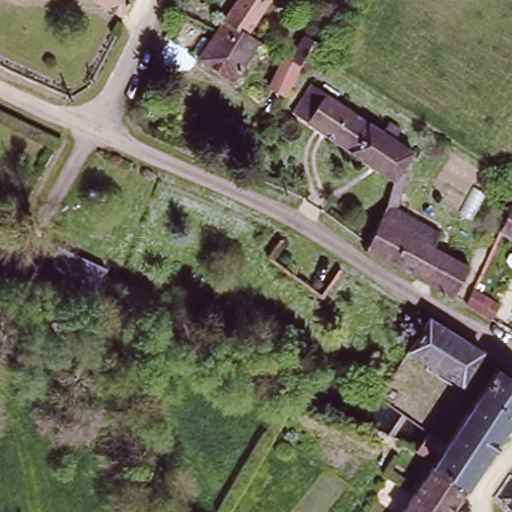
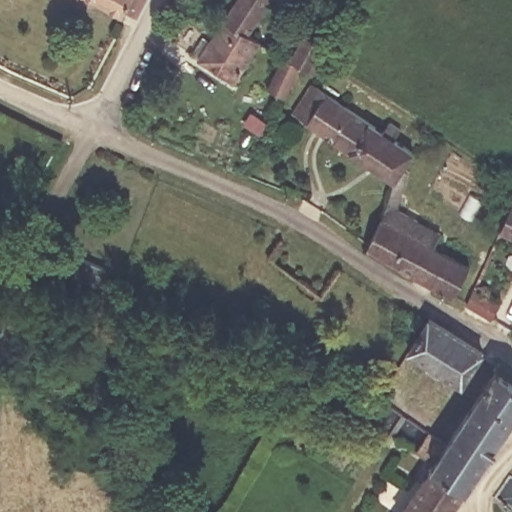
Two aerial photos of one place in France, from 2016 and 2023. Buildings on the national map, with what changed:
unchanged [(101,0),(136,0),(128,13),(101,0)]
unchanged [(250,32),(226,18),(237,0),(269,0),(250,32)]
unchanged [(226,18),(250,32),(265,41),(237,83),(200,59),(214,36),(226,18)]
unchanged [(285,86),(305,54),(321,30),(344,43),(329,69),(302,96),(285,86)]
unchanged [(376,255),(395,213),(405,182),(301,123),(320,90),(333,97),(358,112),(422,150),(411,168),(416,171),(406,211),(451,232),(444,247),(471,260),(454,297),(376,255)]
unchanged [(512,218),(512,230),(508,228),(512,218)]
unchanged [(82,275),(58,261),(66,249),(68,247),(110,271),(102,286),(82,275)]
unchanged [(473,300),(481,283),(508,299),(499,314),(473,300)]
unchanged [(480,361),(464,384),(412,353),(432,322),(487,350),(480,361)]
unchanged [(406,512),(441,459),(424,447),(435,430),(453,442),(455,439),(472,416),(467,412),(497,369),(503,373),(512,379),(512,427),(453,512),(406,512)]

